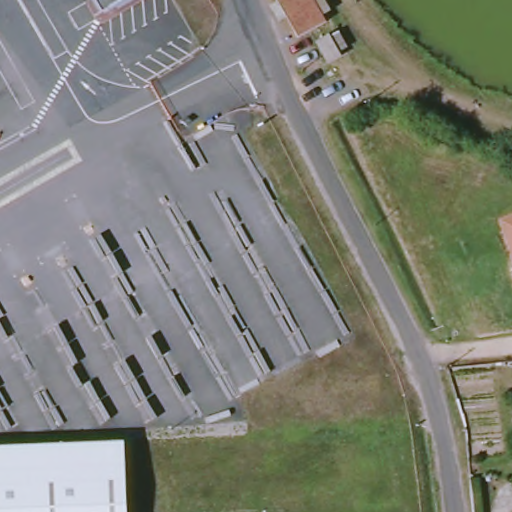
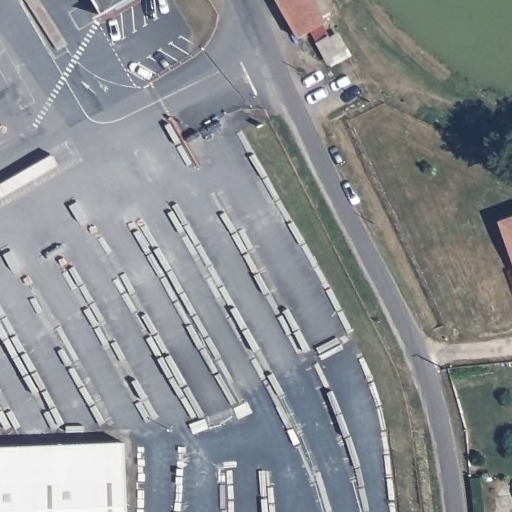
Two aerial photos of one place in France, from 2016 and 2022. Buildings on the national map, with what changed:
unchanged [(93,0),(131,0),(103,16),(93,0)]
unchanged [(299,40),(276,0),(312,0),(326,24),(299,40)]
unchanged [(512,226),(512,253),(504,229),(512,226)]
unchanged [(125,444),(128,512),(0,512),(0,449),(125,444)]

